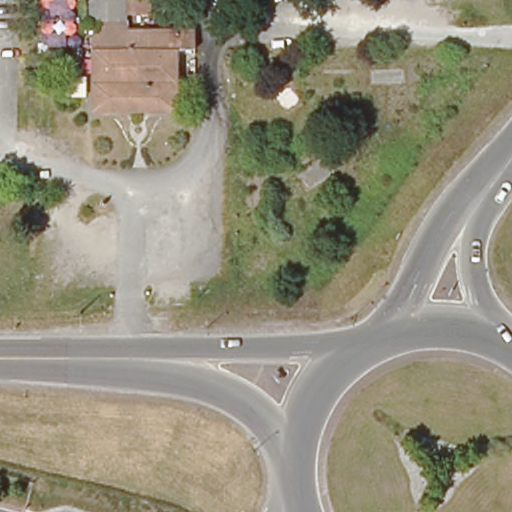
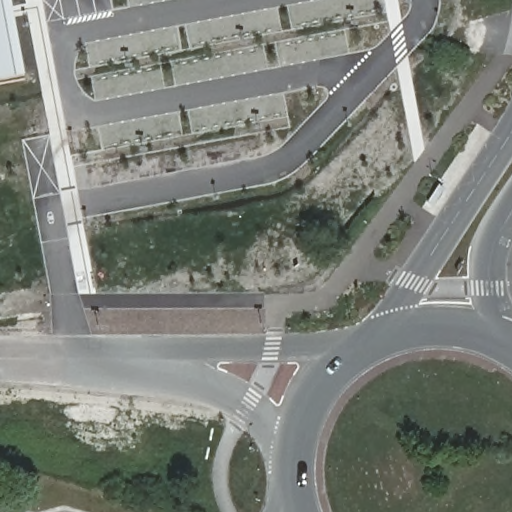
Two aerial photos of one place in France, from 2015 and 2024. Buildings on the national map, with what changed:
new [(0,79),(0,0),(10,0),(25,74),(0,79)]
unchanged [(94,99),(93,16),(125,16),(125,22),(145,22),(193,22),(193,39),(176,39),(176,98),(94,99)]

